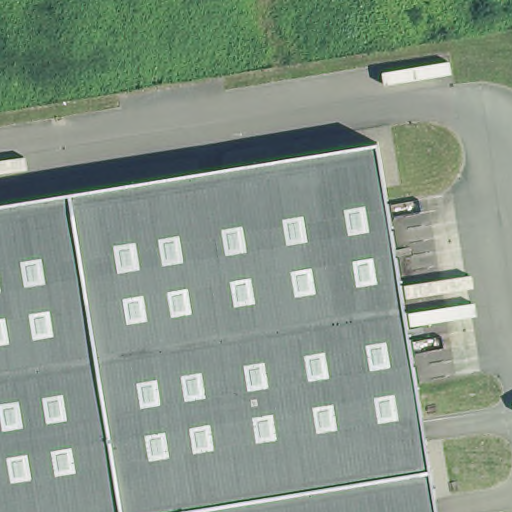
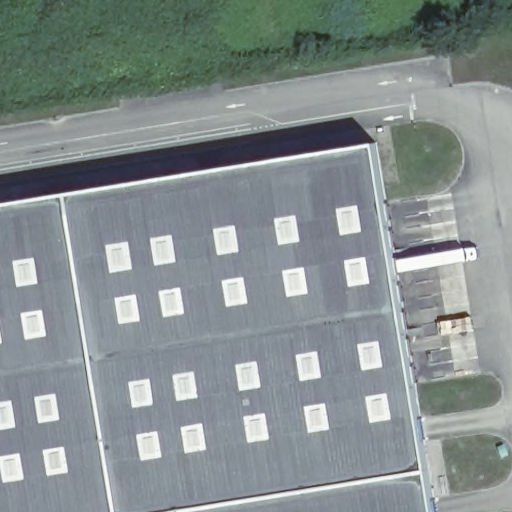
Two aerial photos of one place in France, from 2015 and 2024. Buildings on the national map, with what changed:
unchanged [(0,512),(0,208),(381,145),(439,512),(0,512)]

